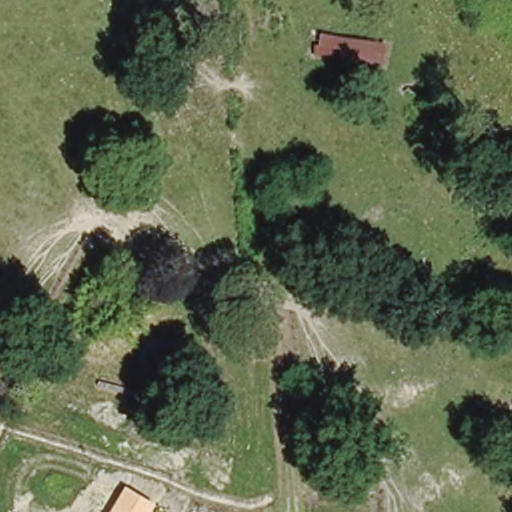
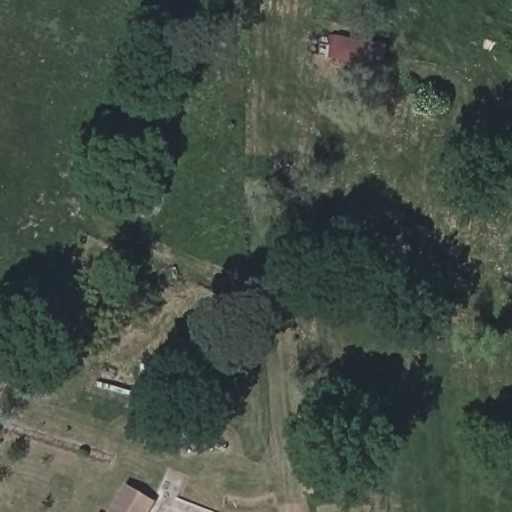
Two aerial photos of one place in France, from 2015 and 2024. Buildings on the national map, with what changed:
unchanged [(385,63),(315,51),(318,28),(388,37),(385,63)]
unchanged [(110,512),(124,487),(155,504),(151,512),(110,512)]

